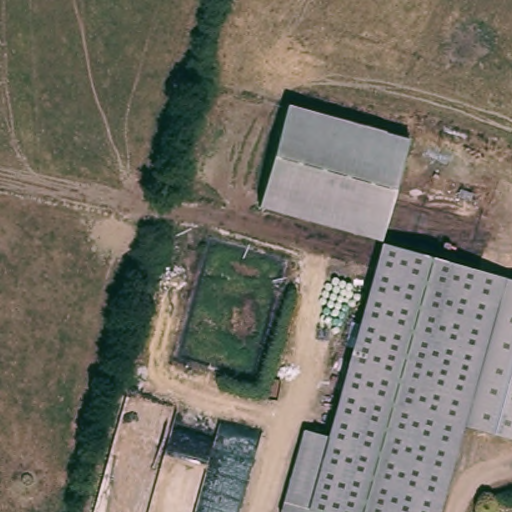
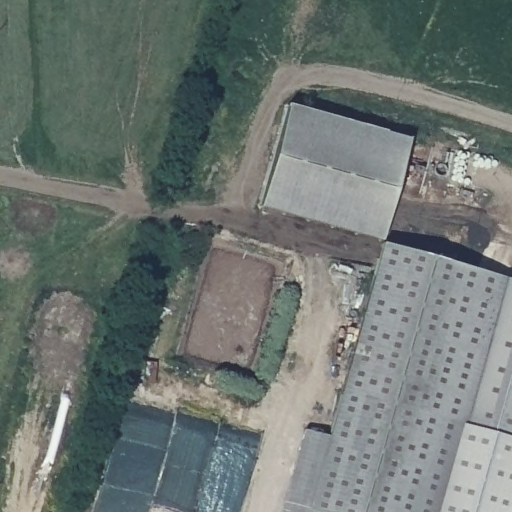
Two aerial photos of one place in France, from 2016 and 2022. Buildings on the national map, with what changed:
unchanged [(415,138),(383,235),(262,196),(295,100),(415,138)]
unchanged [(512,300),(447,512),(285,512),(281,511),(307,426),(330,433),(391,238),(512,278),(512,300)]
unchanged [(512,300),(512,439),(473,426),(512,300)]
new [(512,439),(512,502),(509,512),(447,512),(473,426),(512,439)]

